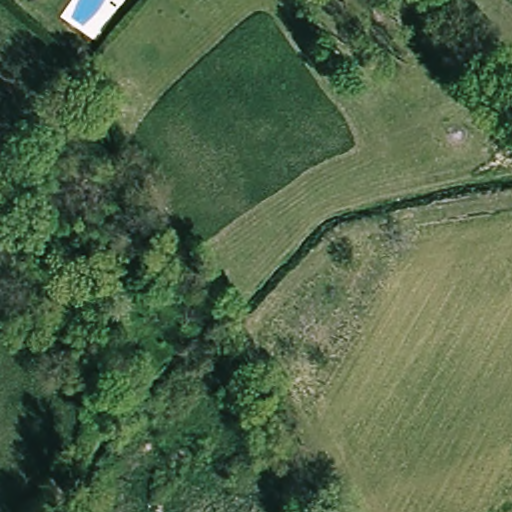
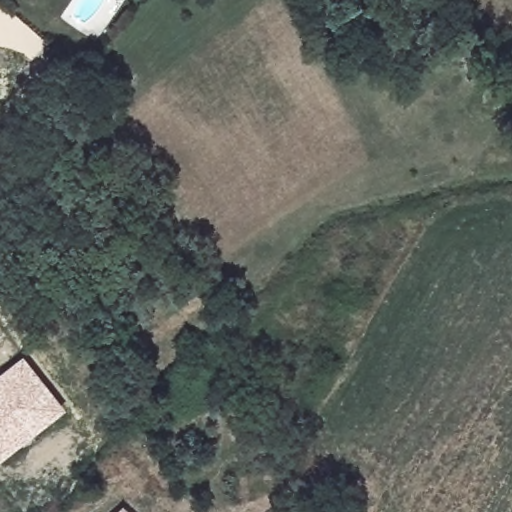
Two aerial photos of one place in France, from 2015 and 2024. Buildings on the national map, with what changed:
new [(67,411),(0,463),(0,462),(0,376),(24,357),(67,411)]
new [(123,506),(129,512),(116,512),(123,506)]

